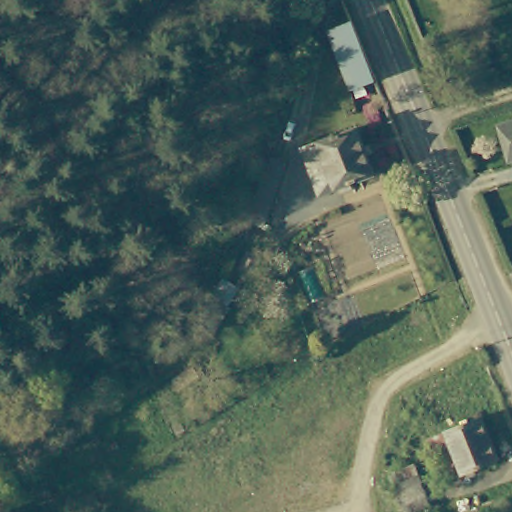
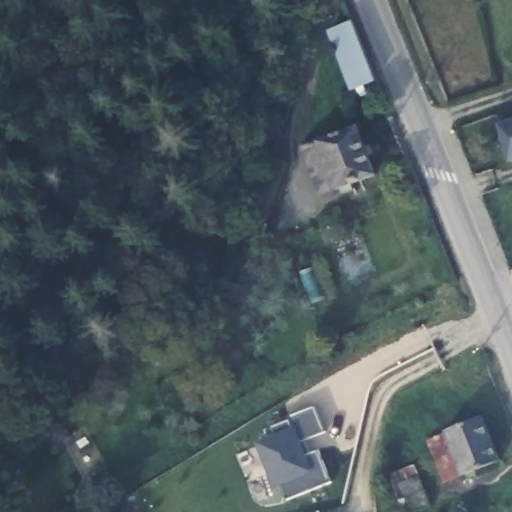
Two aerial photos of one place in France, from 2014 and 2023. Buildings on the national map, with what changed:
unchanged [(352,19),(376,76),(352,85),(329,27),(352,19)]
unchanged [(512,112),(512,150),(511,151),(501,116),(512,112)]
unchanged [(353,124),(371,169),(315,190),(299,145),(353,124)]
unchanged [(274,156),(280,158),(258,220),(252,218),(243,215),(266,152),(274,156)]
unchanged [(233,275),(244,282),(244,283),(231,303),(234,306),(212,337),(204,338),(195,341),(189,332),(190,331),(200,318),(201,318),(232,274),(233,275)]
new [(275,435),(272,427),(290,420),(289,416),(315,407),(324,431),(306,438),(311,454),(318,451),(330,482),(288,498),(283,486),(274,488),(257,442),(275,435)]
unchanged [(484,413),(499,455),(444,477),(428,436),(484,413)]
unchanged [(180,425),(183,431),(175,433),(173,428),(180,425)]
unchanged [(431,506),(416,512),(404,512),(390,476),(415,466),(431,506)]

